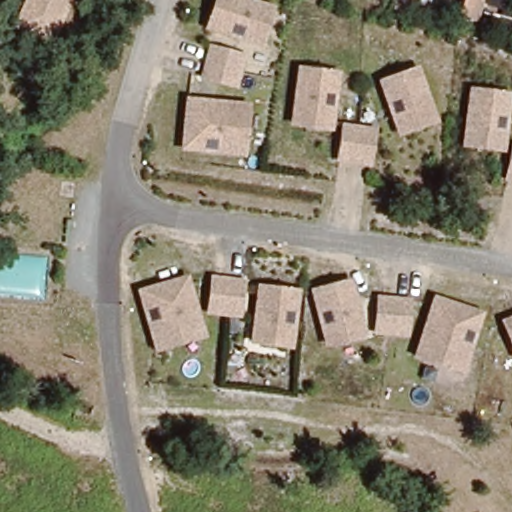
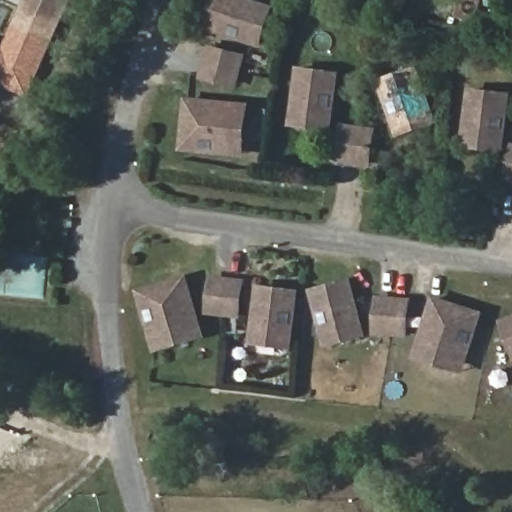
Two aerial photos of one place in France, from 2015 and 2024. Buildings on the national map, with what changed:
unchanged [(53,44),(15,26),(25,0),(72,0),(53,44)]
unchanged [(276,6),(260,47),(205,31),(216,0),(255,0),(276,6)]
unchanged [(476,22),(459,17),(464,0),(484,0),(476,22)]
new [(53,44),(28,97),(0,84),(0,45),(3,46),(15,26),(53,44)]
unchanged [(246,55),(238,89),(200,80),(209,47),(246,55)]
unchanged [(341,74),(333,131),(291,126),(299,67),(341,74)]
unchanged [(420,67),(440,123),(397,137),(379,80),(420,67)]
unchanged [(512,98),(506,153),(462,149),(469,89),(512,93),(512,98)]
unchanged [(252,104),(247,157),(180,151),(187,98),(252,104)]
unchanged [(377,128),(372,168),(336,162),(343,123),(377,128)]
unchanged [(512,155),(512,183),(504,181),(512,155)]
unchanged [(188,276),(208,336),(156,354),(139,290),(188,276)]
unchanged [(247,280),(241,319),(207,315),(215,277),(247,280)]
unchanged [(352,280),(367,335),(325,347),(311,289),(352,280)]
unchanged [(301,290),(292,350),(250,346),(259,286),(301,290)]
unchanged [(411,298),(408,339),(374,336),(378,297),(411,298)]
unchanged [(485,312),(466,374),(414,359),(436,297),(485,312)]
unchanged [(512,344),(504,319),(512,317),(512,344)]

